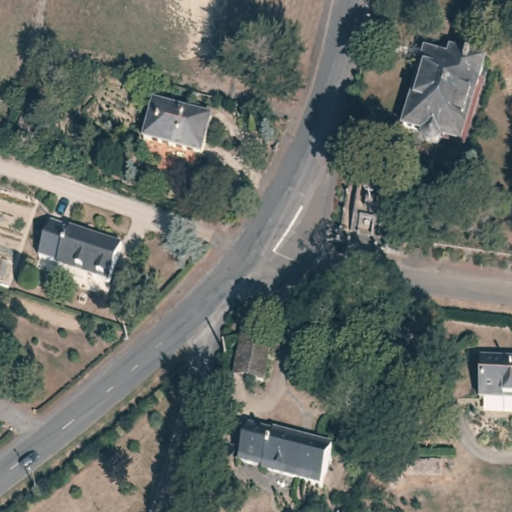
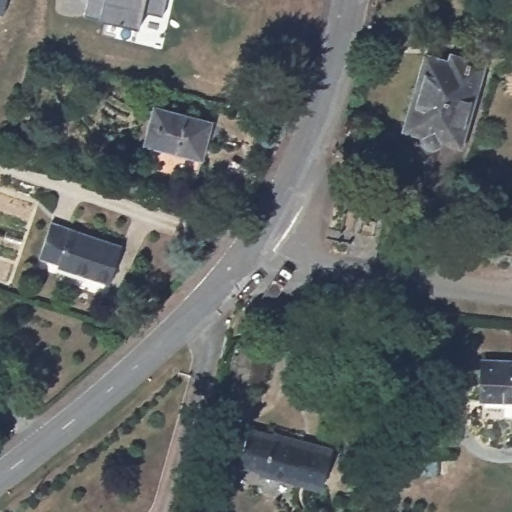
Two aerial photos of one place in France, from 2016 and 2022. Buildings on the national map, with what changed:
unchanged [(5,21),(0,21),(0,0),(9,0),(5,21)]
new [(164,18),(144,13),(139,31),(85,17),(88,0),(167,0),(164,18)]
unchanged [(512,7),(512,21),(497,21),(495,21),(495,7),(512,7)]
unchanged [(475,93),(460,142),(443,136),(438,148),(435,150),(428,150),(424,146),(423,140),(403,133),(425,59),(451,67),(453,59),(485,69),(478,94),(475,93)]
unchanged [(202,159),(145,143),(155,105),(212,121),(202,159)]
unchanged [(26,144),(15,140),(24,121),(28,123),(26,128),(31,130),(26,144)]
unchanged [(110,284),(58,265),(59,263),(39,256),(52,221),(124,246),(110,284)]
unchanged [(263,385),(234,378),(242,333),(271,338),(263,385)]
unchanged [(486,355),(512,356),(512,396),(485,395),(486,355)]
unchanged [(322,489),(261,472),(263,469),(238,463),(249,428),(273,435),(273,433),(332,450),(322,489)]

